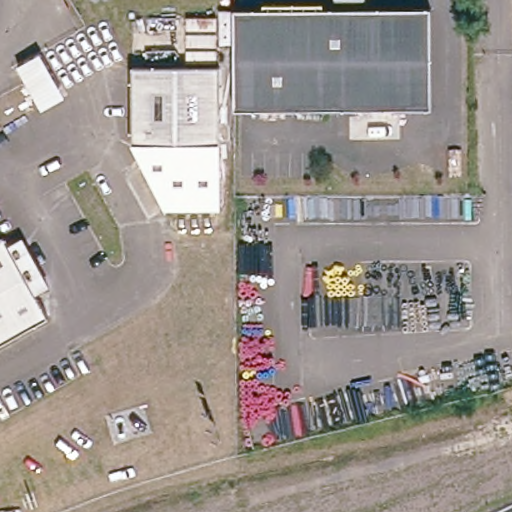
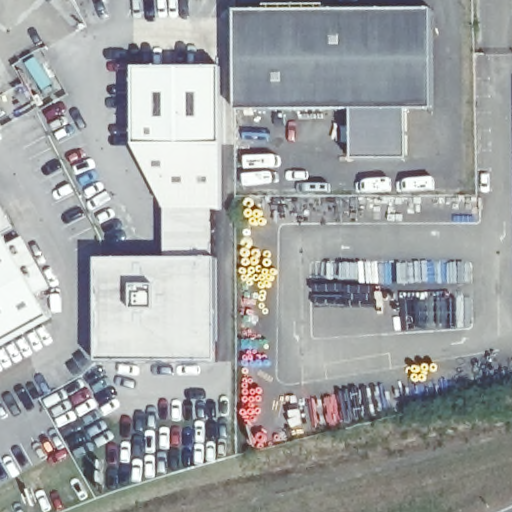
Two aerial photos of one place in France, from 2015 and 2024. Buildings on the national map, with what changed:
unchanged [(426,29),(426,106),(230,107),(230,34),(230,7),(380,6),(426,6),(426,29)]
unchanged [(219,66),(219,141),(219,209),(164,209),(132,143),(131,66),(145,66),(219,66)]
new [(352,160),(352,106),(407,106),(408,160),(352,160)]
new [(15,228),(0,239),(0,201),(15,228)]
new [(96,257),(165,257),(164,209),(214,209),(214,255),(215,359),(95,359),(96,257)]
unchanged [(5,253),(17,246),(45,295),(32,302),(45,326),(0,351),(0,245),(5,253)]

